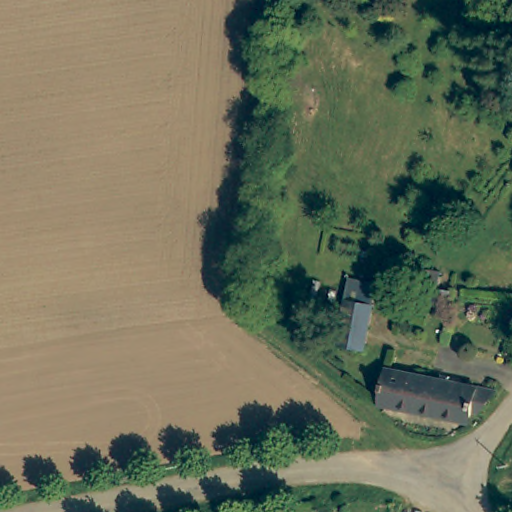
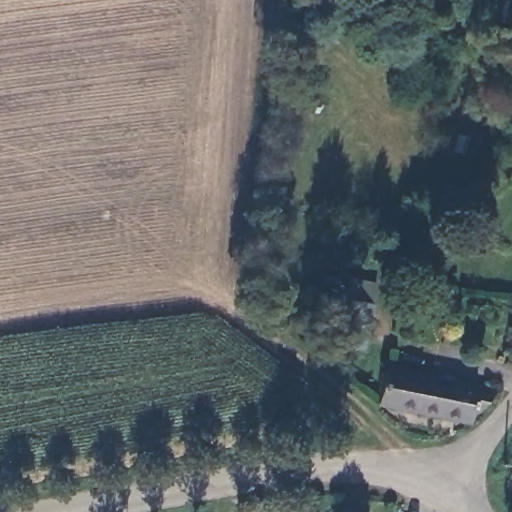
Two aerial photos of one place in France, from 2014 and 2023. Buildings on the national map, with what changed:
unchanged [(379,282),(374,303),(365,350),(337,345),(346,299),(350,278),(379,282)]
unchanged [(444,285),(444,297),(416,295),(417,281),(444,285)]
unchanged [(381,395),(391,361),(432,373),(422,408),(381,395)]
unchanged [(498,392),(479,417),(473,416),(466,423),(422,408),(432,373),(450,378),(498,392)]

